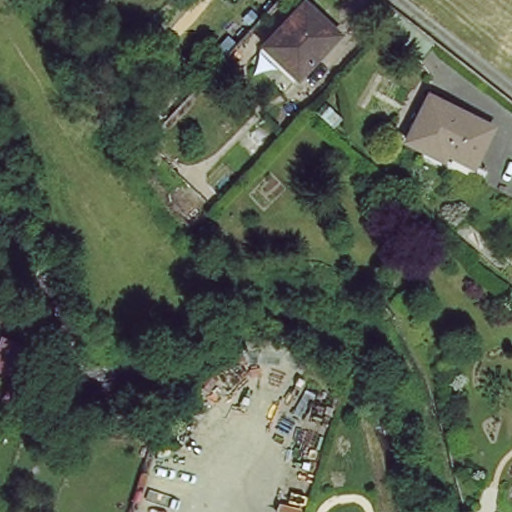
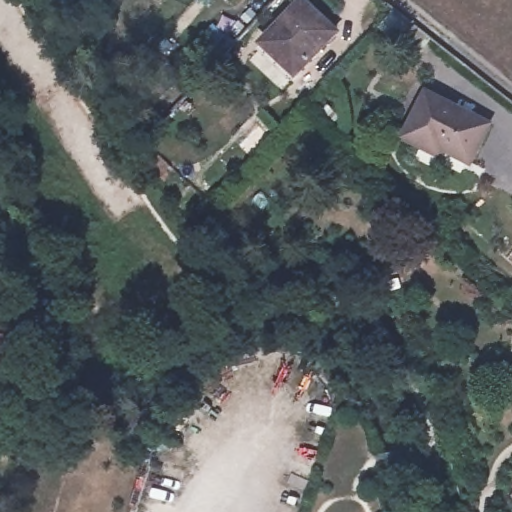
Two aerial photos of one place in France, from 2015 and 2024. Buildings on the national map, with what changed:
unchanged [(262,46),(302,3),(334,34),(295,77),(262,46)]
unchanged [(418,55),(384,28),(397,11),(432,38),(418,55)]
unchanged [(442,151),(439,158),(404,140),(427,95),(490,127),(470,165),(442,151)]

